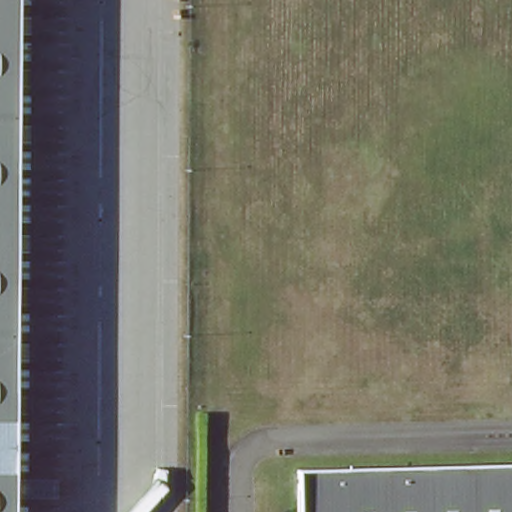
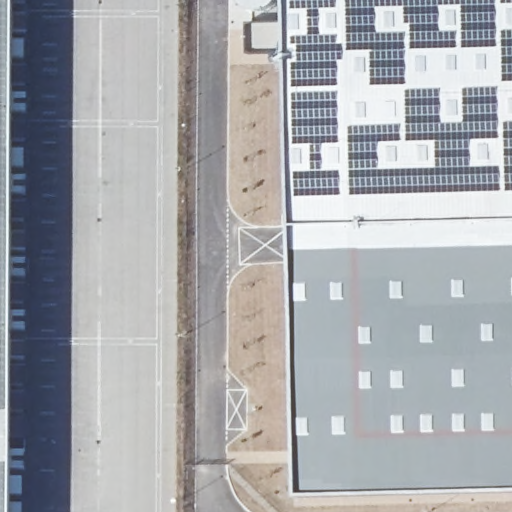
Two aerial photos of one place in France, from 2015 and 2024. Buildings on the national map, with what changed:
unchanged [(11,512),(0,512),(0,0),(13,0),(11,512)]
new [(276,5),(269,9),(259,11),(251,9),(243,5),(240,0),(279,0),(276,5)]
new [(454,493),(300,498),(298,455),(298,378),(294,267),(294,225),(295,180),(292,62),(289,37),(286,37),(286,49),(255,50),(254,22),(289,22),(289,0),(512,0),(512,492),(454,493)]
demolished [(512,465),(512,512),(300,512),(299,472),(512,465)]

